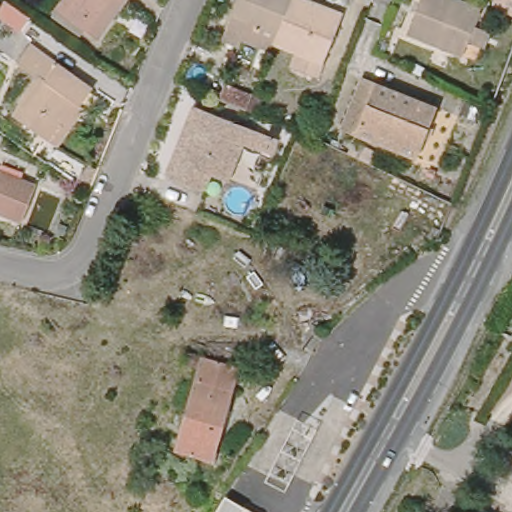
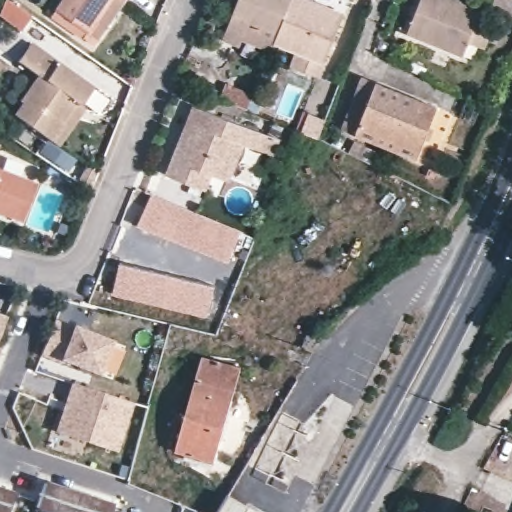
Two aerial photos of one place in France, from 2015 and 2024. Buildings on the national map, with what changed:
unchanged [(0,19),(0,0),(2,0),(26,16),(15,31),(0,19)]
unchanged [(98,38),(85,29),(81,35),(53,15),(63,0),(125,0),(98,38)]
unchanged [(278,20),(270,41),(266,50),(238,38),(235,45),(218,37),(232,0),(286,0),(278,20)]
unchanged [(286,66),(292,50),(270,41),(278,20),(286,0),(303,0),(328,10),(338,14),(336,21),(313,77),(286,66)]
unchanged [(482,52),(468,46),(463,60),(407,38),(422,0),(442,0),(481,15),(475,30),(488,35),(482,52)]
new [(495,0),(512,0),(512,16),(492,10),(495,0)]
unchanged [(53,146),(46,141),(9,115),(17,102),(15,100),(33,75),(13,61),(25,43),(88,87),(76,105),(80,107),(53,146)]
unchanged [(416,157),(342,128),(363,76),(437,106),(416,157)]
unchanged [(258,114),(247,110),(219,99),(213,96),(216,89),(222,91),(225,85),(253,95),(252,97),(263,101),(258,114)]
unchanged [(206,174),(200,189),(161,173),(175,138),(183,120),(189,105),(257,132),(274,140),(267,155),(251,149),(239,144),(231,162),(223,180),(211,175),(206,174)]
new [(298,130),(305,114),(323,122),(317,137),(298,130)]
unchanged [(0,143),(0,141),(1,141),(0,143)]
unchanged [(371,164),(352,154),(349,152),(355,141),(377,152),(371,164)]
unchanged [(90,191),(77,182),(87,162),(99,170),(90,191)]
unchanged [(0,172),(42,189),(27,226),(0,216),(0,172)]
new [(136,213),(142,215),(150,195),(243,231),(230,261),(133,222),(136,213)]
new [(119,262),(214,285),(206,316),(112,294),(119,262)]
new [(0,327),(0,316),(4,317),(0,327)]
new [(72,328),(73,326),(110,341),(97,375),(60,360),(59,362),(40,355),(54,321),(72,328)]
unchanged [(312,352),(302,346),(312,323),(325,332),(312,352)]
unchanged [(214,458),(214,461),(175,450),(180,431),(201,356),(240,367),(214,458)]
new [(117,452),(54,431),(71,383),(133,402),(117,452)]
demolished [(286,487),(254,470),(284,412),(316,428),(286,487)]
new [(44,479),(113,504),(110,512),(50,512),(35,507),(44,479)]
new [(8,512),(0,512),(0,489),(14,494),(8,512)]
unchanged [(252,510),(254,512),(216,512),(226,495),(252,510)]

